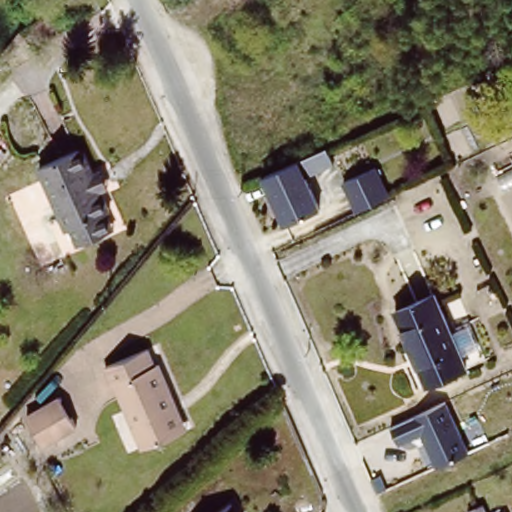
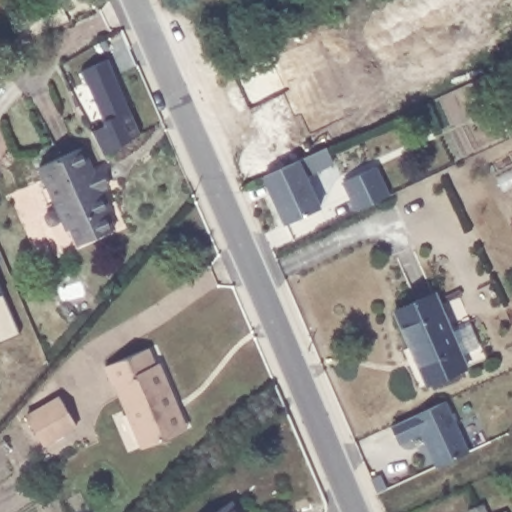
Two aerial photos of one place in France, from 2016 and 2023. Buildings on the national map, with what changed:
new [(105,155),(94,130),(105,125),(104,120),(81,71),(107,59),(140,133),(105,155)]
unchanged [(309,179),(324,213),(289,228),(268,181),(325,155),(355,141),(361,154),(330,166),(332,169),(309,179)]
unchanged [(87,144),(129,230),(79,247),(36,164),(87,144)]
unchanged [(339,178),(376,162),(390,195),(354,210),(339,178)]
new [(0,286),(4,295),(20,334),(0,343),(0,286)]
unchanged [(428,382),(395,309),(435,292),(467,365),(428,382)]
unchanged [(180,430),(140,445),(115,377),(114,378),(107,360),(150,344),(157,361),(160,360),(171,390),(185,428),(180,430)]
unchanged [(29,414),(63,396),(79,428),(44,445),(29,414)]
unchanged [(425,431),(400,443),(392,423),(447,400),(470,450),(440,463),(425,431)]
unchanged [(243,512),(206,512),(233,493),(243,512)]

